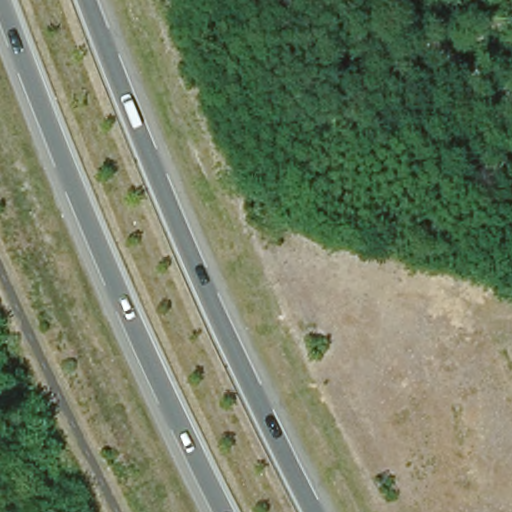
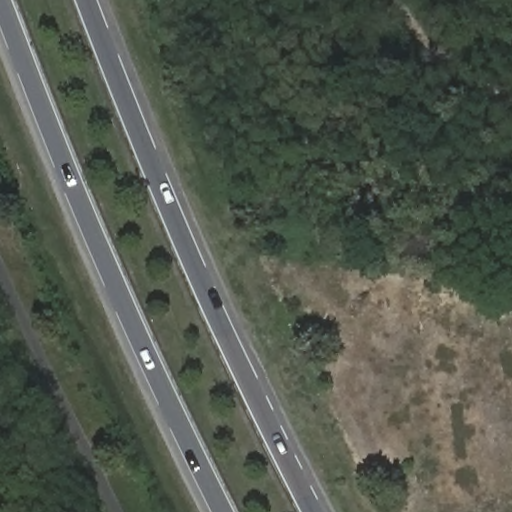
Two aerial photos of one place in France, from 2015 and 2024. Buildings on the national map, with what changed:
[]

